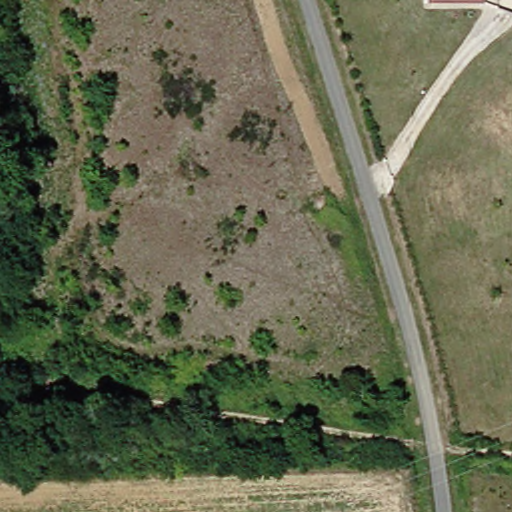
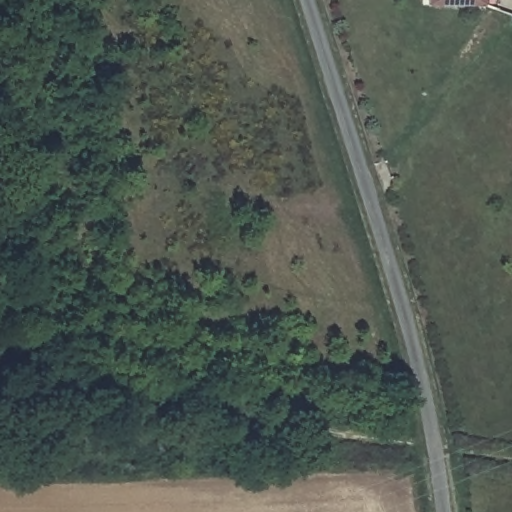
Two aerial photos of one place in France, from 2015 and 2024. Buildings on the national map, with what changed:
unchanged [(437,7),(437,0),(493,0),(494,6),(437,7)]

